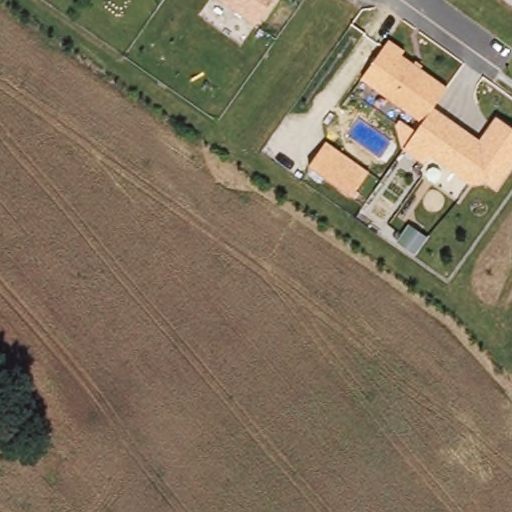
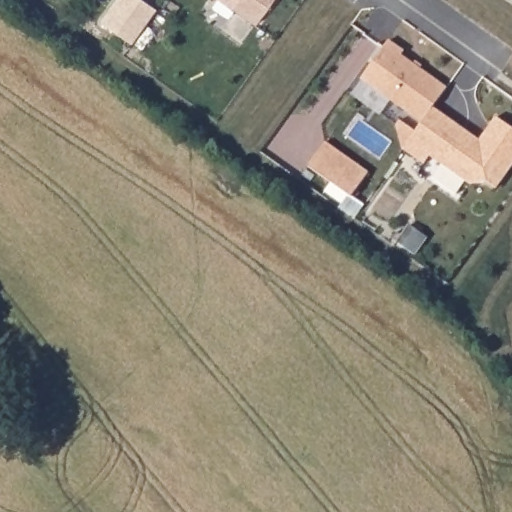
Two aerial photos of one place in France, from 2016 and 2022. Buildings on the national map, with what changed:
new [(142,0),(156,10),(131,45),(101,23),(117,0),(142,0)]
unchanged [(219,0),(273,0),(255,26),(219,0)]
unchanged [(388,41),(404,52),(401,56),(413,65),(415,62),(422,67),(420,69),(447,89),(433,108),(422,122),(361,80),(388,41)]
unchanged [(403,150),(409,142),(422,122),(433,108),(469,134),(479,141),(496,117),(512,129),(512,166),(496,189),(486,182),(470,185),(430,157),(424,165),(403,150)]
unchanged [(370,175),(351,202),(305,170),(325,142),(370,175)]
new [(408,226),(426,239),(413,257),(395,244),(408,226)]

